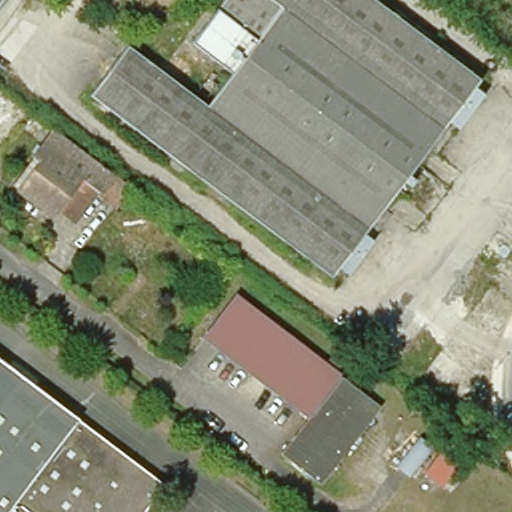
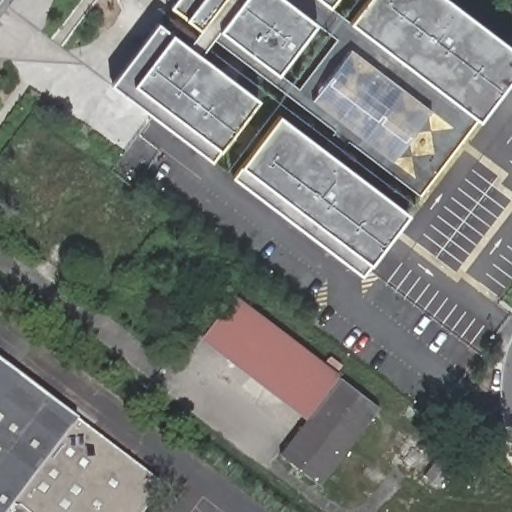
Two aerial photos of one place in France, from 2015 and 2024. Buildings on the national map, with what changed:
demolished [(236,71),(212,54),(207,61),(190,49),(226,0),(371,0),(480,82),(331,282),(88,102),(126,50),(208,110),(231,79),(236,71)]
new [(187,44),(200,28),(187,18),(172,6),(177,0),(289,0),(317,22),(278,74),(221,30),(201,55),(259,97),(221,149),(213,159),(114,83),(159,22),(173,34),(187,44)]
new [(330,6),(322,0),(334,0),(330,6)]
new [(365,0),(453,0),(512,46),(512,75),(479,119),(350,20),(365,0)]
new [(292,97),(350,20),(479,119),(421,194),(292,97)]
new [(233,176),(242,164),(279,114),(409,212),(371,262),(362,274),(233,176)]
unchanged [(50,209),(46,214),(13,189),(7,184),(26,159),(47,131),(101,172),(107,176),(122,187),(110,203),(95,192),(91,189),(66,221),(50,209)]
unchanged [(202,337),(233,296),(334,374),(303,415),(202,337)]
unchanged [(145,512),(0,512),(0,360),(165,486),(145,512)]
unchanged [(338,377),(377,407),(319,486),(279,455),(338,377)]

